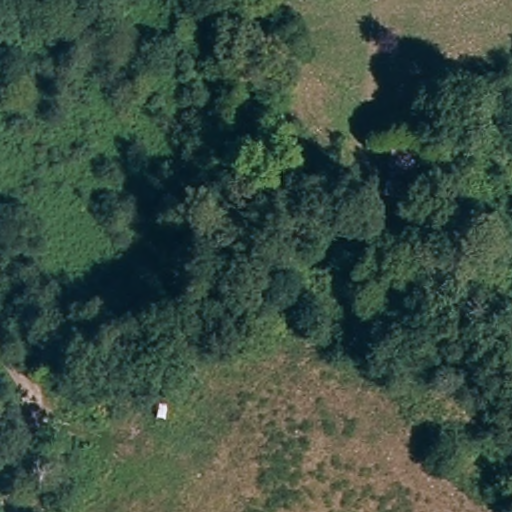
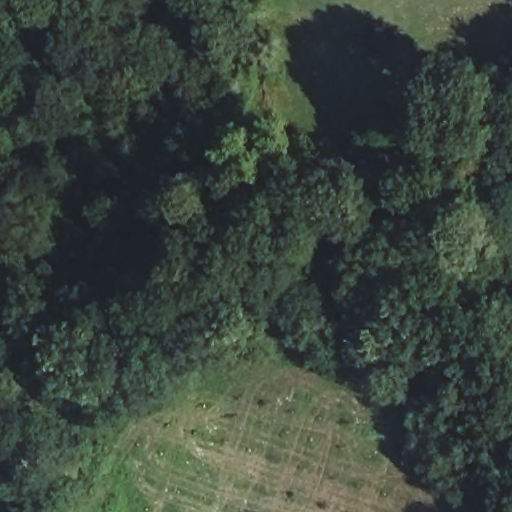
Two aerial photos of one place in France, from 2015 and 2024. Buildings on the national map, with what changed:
unchanged [(423,145),(419,177),(436,179),(432,205),(383,201),(389,140),(423,145)]

